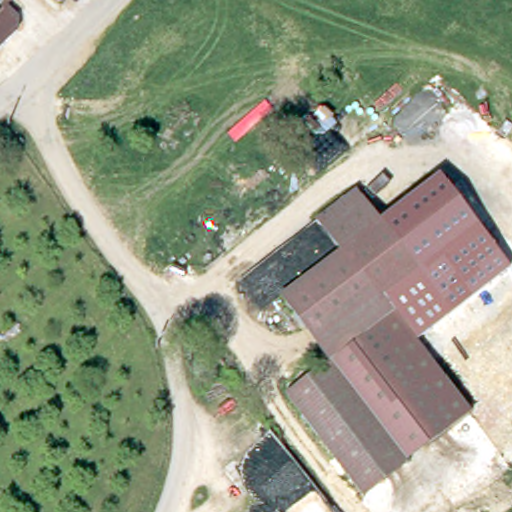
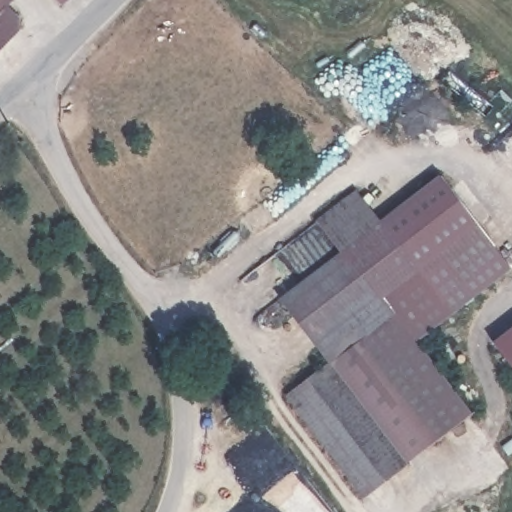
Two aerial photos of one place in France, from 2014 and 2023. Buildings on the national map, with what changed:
unchanged [(12,0),(7,5),(8,6),(18,15),(19,29),(0,50),(0,0),(12,0)]
unchanged [(68,7),(60,0),(75,0),(68,7)]
unchanged [(438,174),(510,267),(424,334),(406,311),(431,283),(381,219),(438,174)]
unchanged [(281,392),(329,357),(282,291),(340,247),(312,211),(352,183),(431,283),(406,311),(481,410),(410,456),(358,494),(281,392)]
new [(512,327),(512,366),(493,342),(512,327)]

